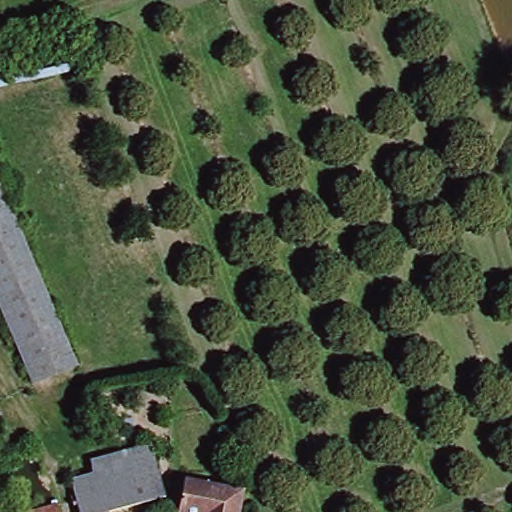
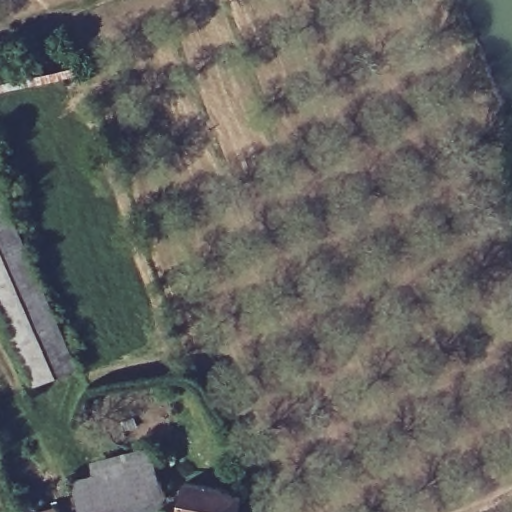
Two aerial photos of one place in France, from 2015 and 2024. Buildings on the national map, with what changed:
unchanged [(73,365),(33,385),(0,315),(0,211),(73,365)]
unchanged [(146,461),(157,497),(109,512),(73,512),(69,500),(78,497),(73,484),(146,461)]
unchanged [(233,495),(231,512),(173,512),(178,485),(233,495)]

